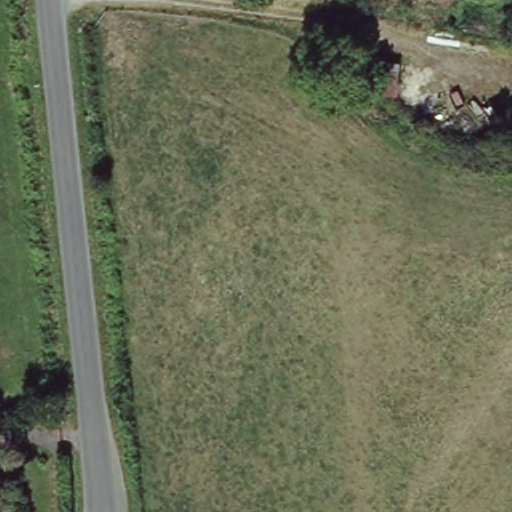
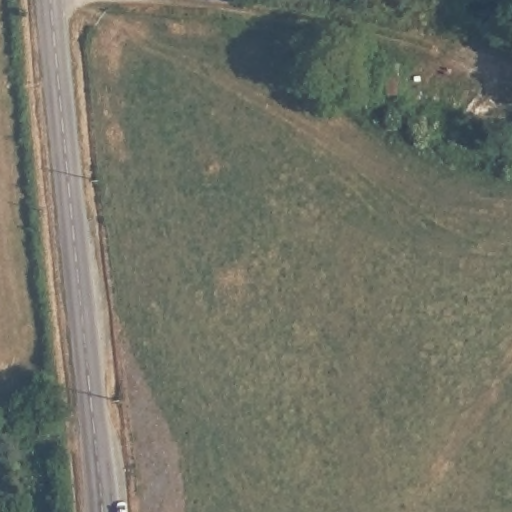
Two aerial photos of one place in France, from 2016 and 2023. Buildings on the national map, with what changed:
unchanged [(390,97),(357,92),(361,57),(394,64),(390,97)]

